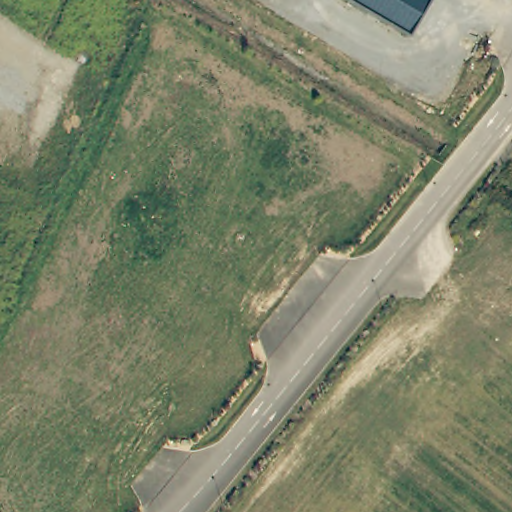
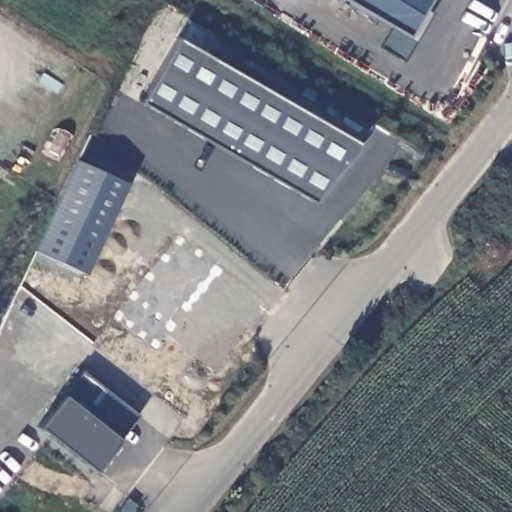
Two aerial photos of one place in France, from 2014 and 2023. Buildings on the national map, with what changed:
unchanged [(352,0),(430,0),(410,35),(352,0)]
new [(410,35),(425,8),(434,14),(405,59),(382,46),(394,26),(410,35)]
new [(176,34),(367,146),(318,207),(138,101),(176,34)]
new [(65,398),(87,373),(139,416),(119,442),(94,473),(39,429),(65,398)]

